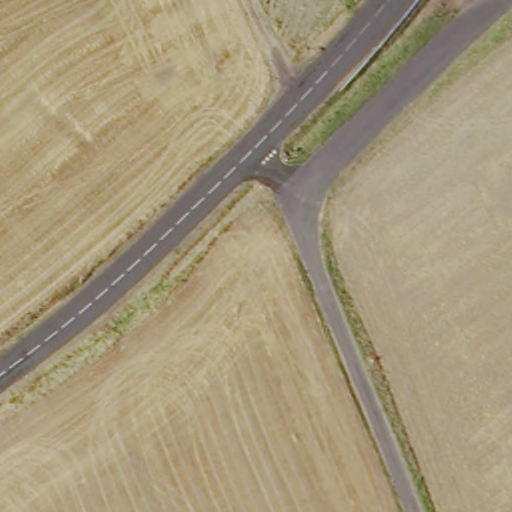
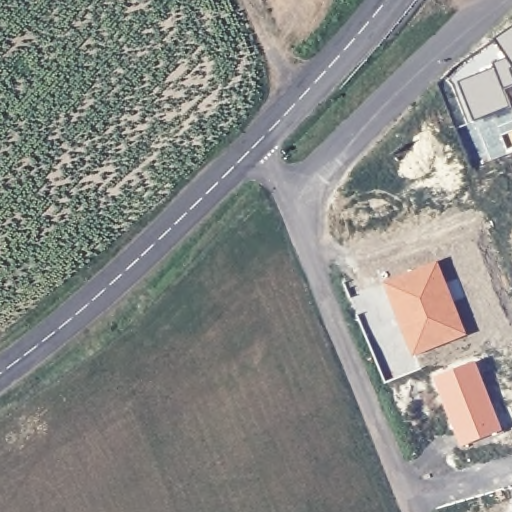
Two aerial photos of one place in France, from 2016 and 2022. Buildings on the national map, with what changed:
new [(496,69),(493,64),(506,57),(494,40),(512,29),(512,88),(504,90),(512,109),(474,123),(458,83),(496,69)]
new [(437,264),(467,337),(417,357),(405,326),(413,323),(404,298),(395,301),(388,283),(437,264)]
new [(481,362),(506,429),(468,444),(442,377),(481,362)]

